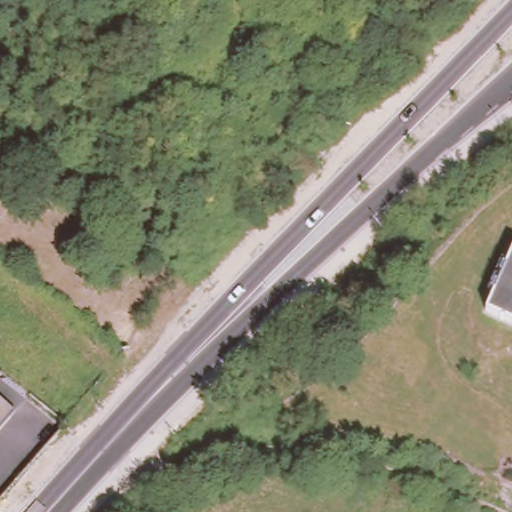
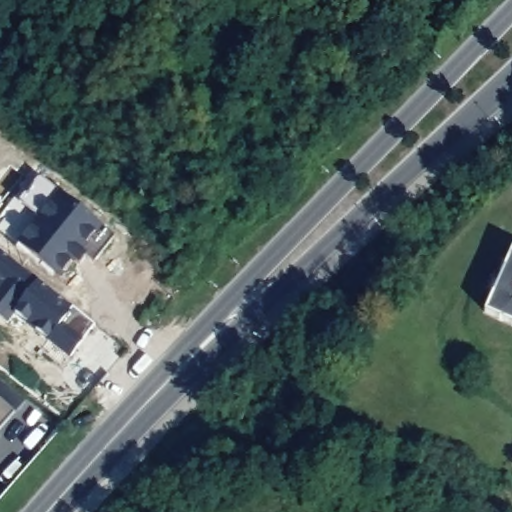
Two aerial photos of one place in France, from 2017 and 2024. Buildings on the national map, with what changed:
new [(26,194),(29,195),(34,184),(40,176),(59,191),(103,227),(114,235),(95,261),(87,255),(79,266),(72,260),(60,277),(19,245),(0,230),(0,226),(11,211),(8,207),(15,200),(20,203),(26,194)]
new [(38,280),(72,308),(95,324),(83,340),(70,358),(48,341),(14,315),(8,323),(0,317),(0,251),(38,280)]
unchanged [(486,313),(512,254),(512,325),(486,313)]
unchanged [(26,407),(0,435),(0,383),(26,407)]

